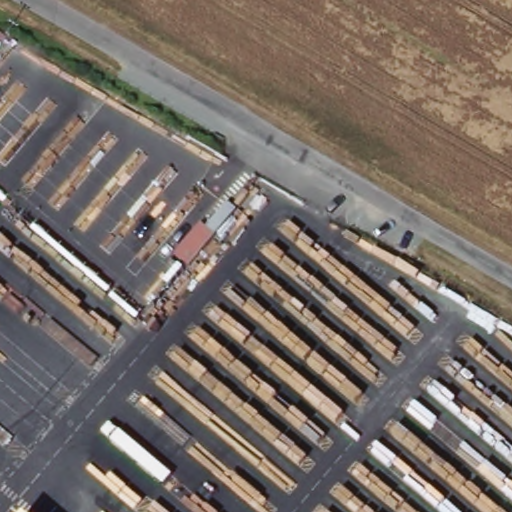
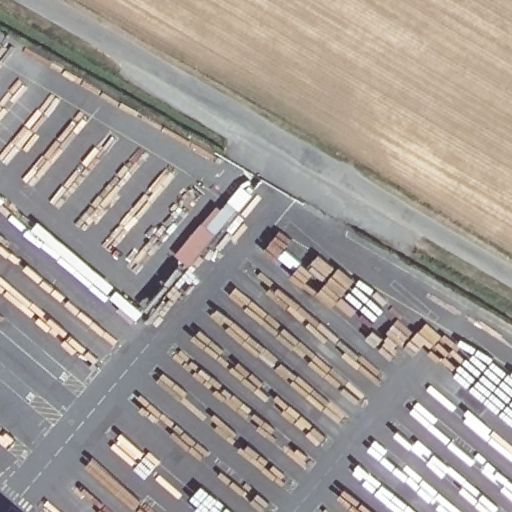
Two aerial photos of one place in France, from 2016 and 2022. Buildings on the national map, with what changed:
[]

